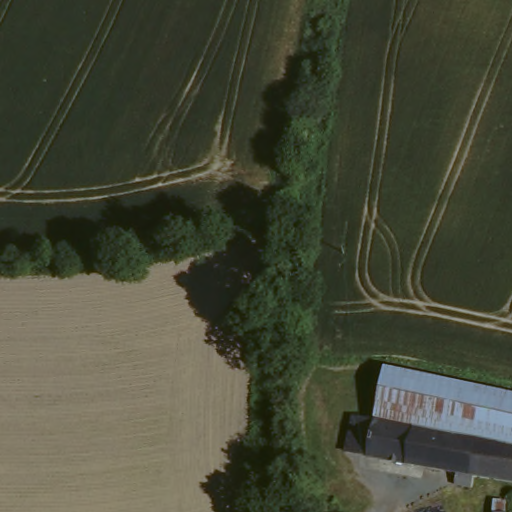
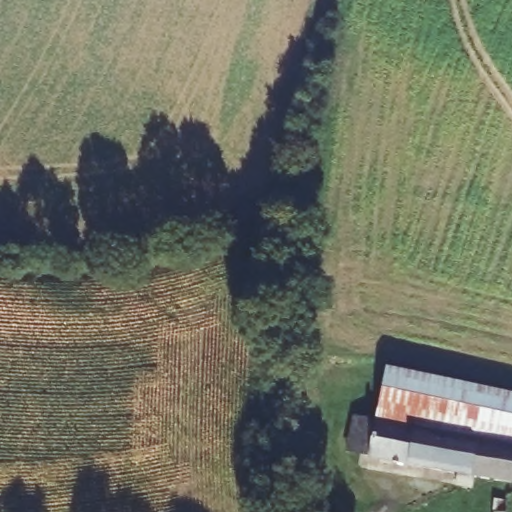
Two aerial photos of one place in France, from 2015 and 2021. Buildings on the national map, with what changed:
unchanged [(381,368),(512,391),(512,446),(463,438),(381,425),(379,417),(375,416),(381,368)]
unchanged [(448,473),(365,459),(340,455),(347,417),(370,422),(381,425),(463,438),(512,446),(512,484),(470,477),(463,485),(447,483),(448,473)]
unchanged [(493,502),(508,505),(507,512),(492,512),(493,502)]

